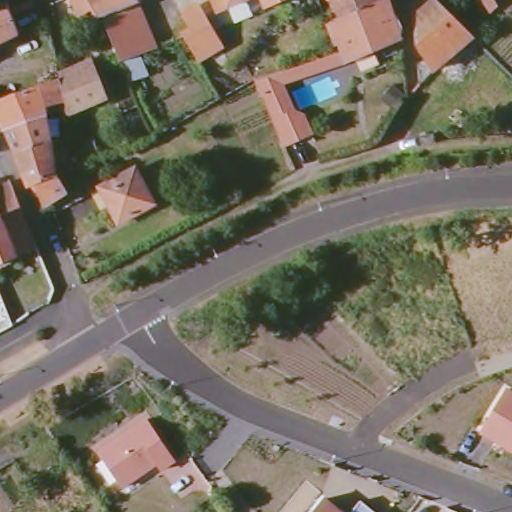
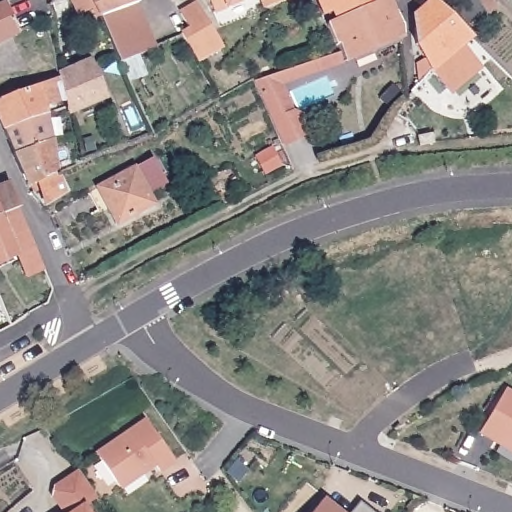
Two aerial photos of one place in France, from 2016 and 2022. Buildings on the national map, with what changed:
unchanged [(86,0),(127,0),(92,10),(86,0)]
unchanged [(230,0),(214,5),(212,0),(230,0)]
unchanged [(280,0),(264,5),(262,0),(280,0)]
unchanged [(398,35),(338,60),(337,56),(334,47),(331,41),(329,43),(320,21),(331,16),(328,9),(317,14),(312,0),(372,0),(374,0),(381,15),(389,12),(395,25),(398,34),(398,35)]
unchanged [(460,55),(445,67),(437,59),(425,70),(416,81),(411,59),(420,56),(412,43),(409,16),(426,0),(433,0),(435,2),(459,25),(467,34),(452,45),(460,55)]
unchanged [(478,0),(489,0),(492,4),(485,12),(478,0)]
unchanged [(224,45),(199,60),(191,46),(184,35),(192,29),(184,15),(197,5),(199,4),(224,45)]
unchanged [(12,30),(13,34),(0,41),(0,6),(12,30)]
unchanged [(338,60),(340,65),(342,65),(285,85),(294,108),(305,115),(312,135),(282,146),(257,80),(337,56),(338,60)]
unchanged [(52,71),(88,57),(102,92),(60,107),(59,104),(58,99),(53,74),(52,71)]
unchanged [(58,99),(40,104),(40,110),(0,125),(0,94),(29,81),(32,80),(53,74),(58,99)]
unchanged [(40,110),(45,139),(9,152),(0,131),(0,125),(40,110)]
unchanged [(427,129),(430,136),(430,139),(417,144),(415,137),(414,134),(427,129)]
unchanged [(25,183),(23,184),(9,152),(45,139),(51,170),(54,169),(62,189),(40,205),(25,183)]
unchanged [(91,185),(127,165),(146,201),(112,220),(91,185)]
unchanged [(12,251),(7,254),(0,257),(0,179),(4,178),(6,183),(15,205),(12,205),(22,227),(24,226),(30,242),(12,251)]
unchanged [(504,386),(512,391),(512,452),(477,431),(504,386)]
unchanged [(94,449),(145,415),(175,460),(158,472),(152,463),(117,486),(94,449)]
new [(84,506),(88,512),(60,512),(52,500),(54,486),(77,470),(95,499),(84,506)]
unchanged [(322,495),(343,512),(309,512),(322,495)]
unchanged [(360,502),(372,512),(352,512),(360,502)]

